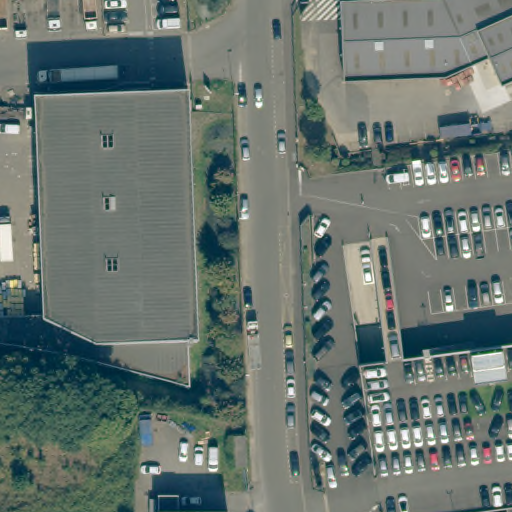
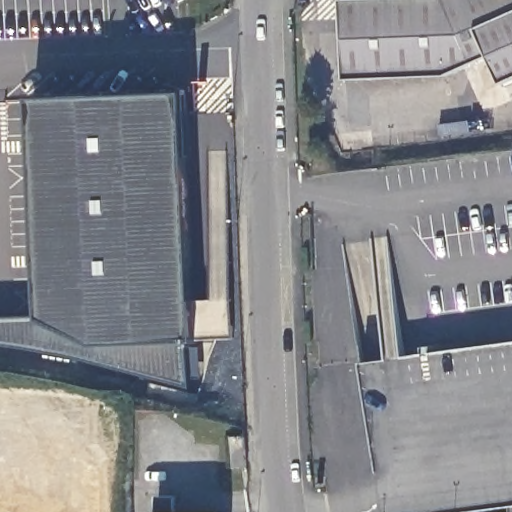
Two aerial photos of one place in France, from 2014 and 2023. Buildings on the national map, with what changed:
unchanged [(502,87),(489,60),(446,79),(344,82),(341,0),(512,0),(512,82),(502,87)]
unchanged [(147,101),(186,99),(187,117),(197,348),(187,349),(164,350),(95,353),(42,327),(42,322),(32,105),(147,101)]
unchanged [(95,353),(164,350),(187,349),(189,393),(166,387),(70,363),(20,354),(0,351),(0,324),(42,322),(42,327),(95,353)]
unchanged [(512,340),(512,504),(449,512),(378,512),(358,360),(512,340)]
unchanged [(235,438),(246,437),(248,455),(249,468),(237,470),(235,438)]
unchanged [(160,494),(177,494),(178,511),(229,512),(160,512),(161,511),(160,494)]

